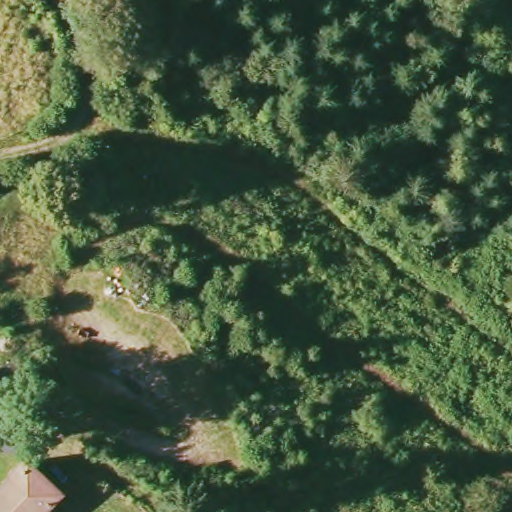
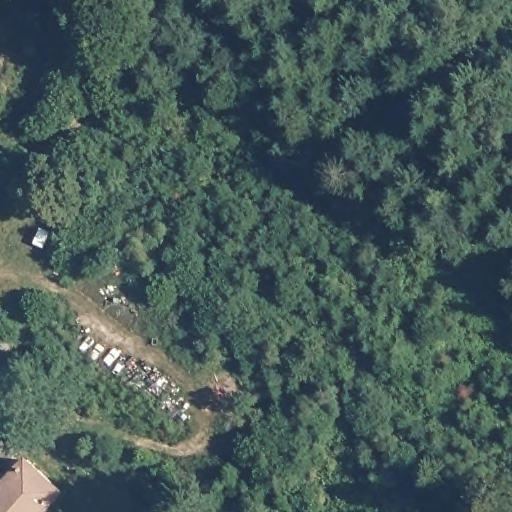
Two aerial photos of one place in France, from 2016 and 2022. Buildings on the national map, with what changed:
unchanged [(60,490),(39,512),(0,512),(0,487),(26,459),(60,490)]

